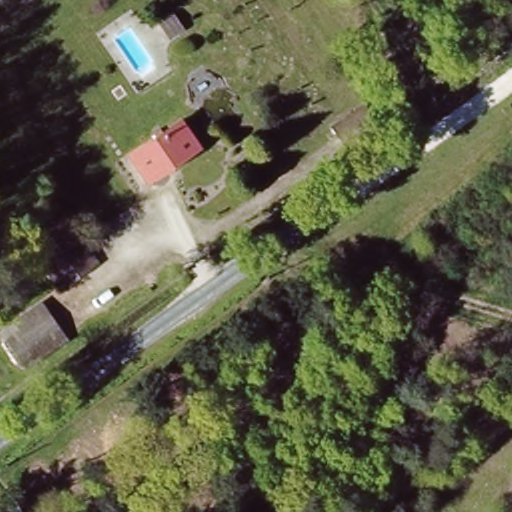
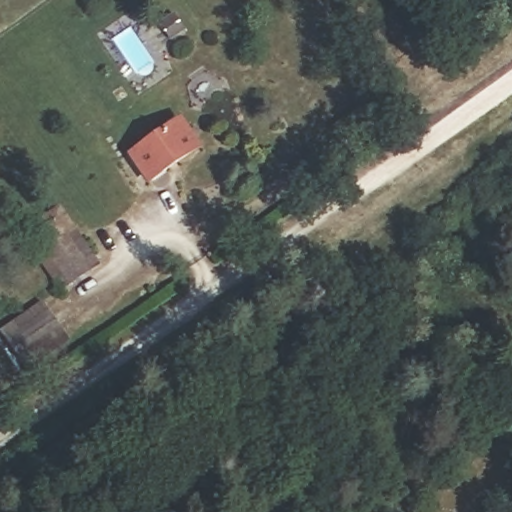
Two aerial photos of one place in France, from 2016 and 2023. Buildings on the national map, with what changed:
unchanged [(333,126),(364,107),(380,133),(346,153),(333,126)]
unchanged [(126,157),(181,119),(203,152),(147,190),(126,157)]
unchanged [(23,232),(63,209),(105,267),(66,294),(23,232)]
unchanged [(0,331),(0,329),(41,300),(65,345),(28,368),(0,331)]

